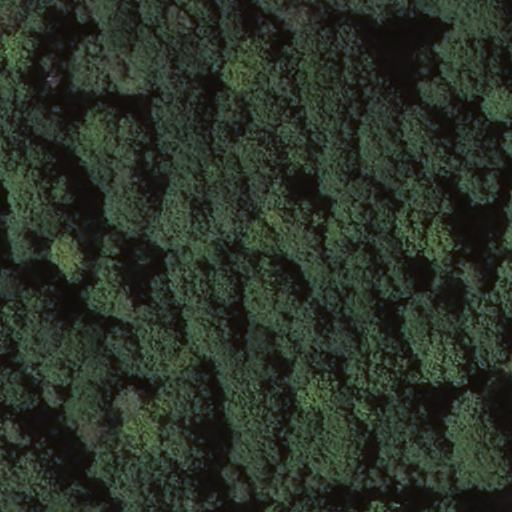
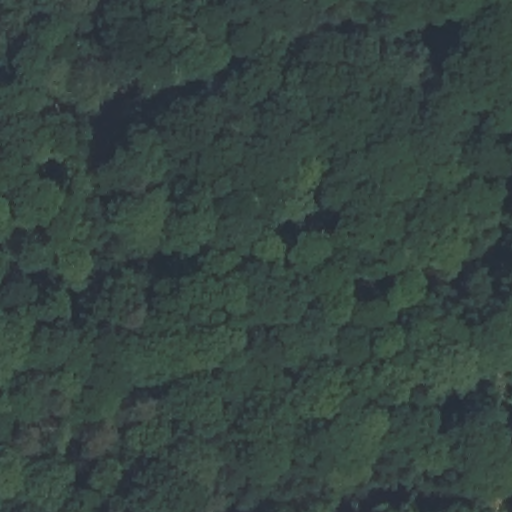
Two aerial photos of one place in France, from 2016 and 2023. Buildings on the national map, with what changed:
[]

